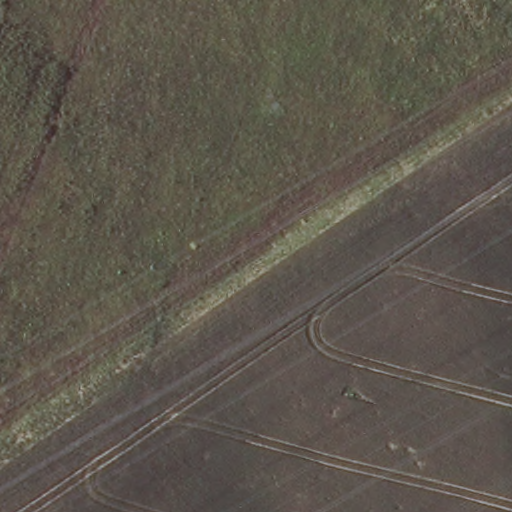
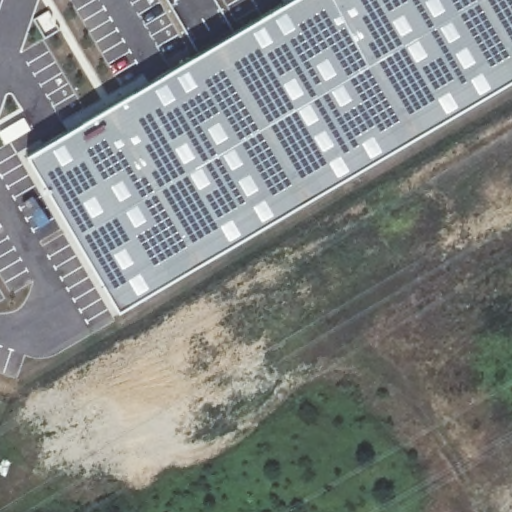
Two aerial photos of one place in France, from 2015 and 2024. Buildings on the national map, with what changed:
new [(285,0),(512,0),(512,78),(308,197),(117,310),(60,215),(25,153),(285,0)]

